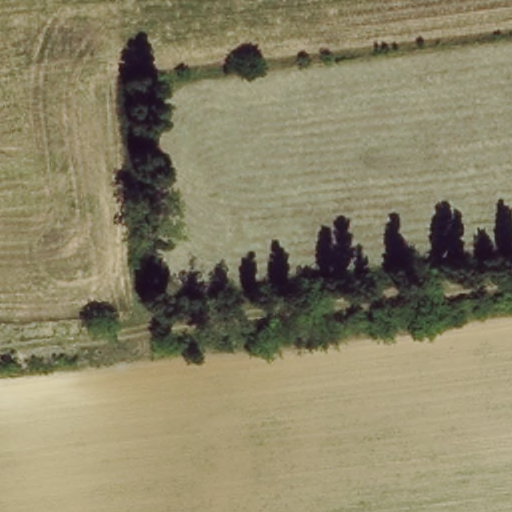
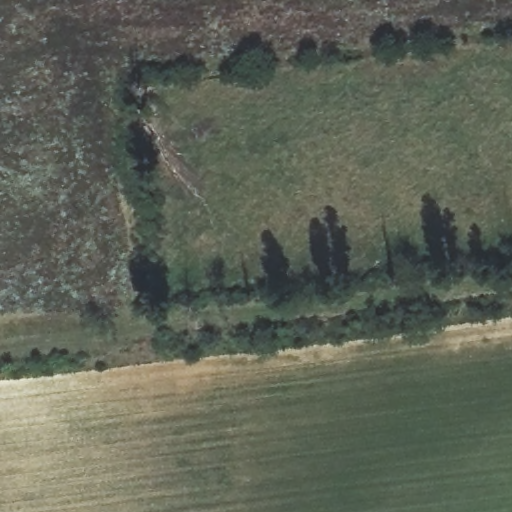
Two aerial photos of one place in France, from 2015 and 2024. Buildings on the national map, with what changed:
[]

